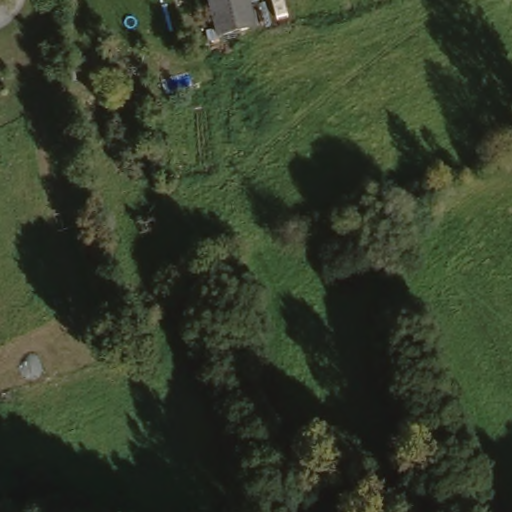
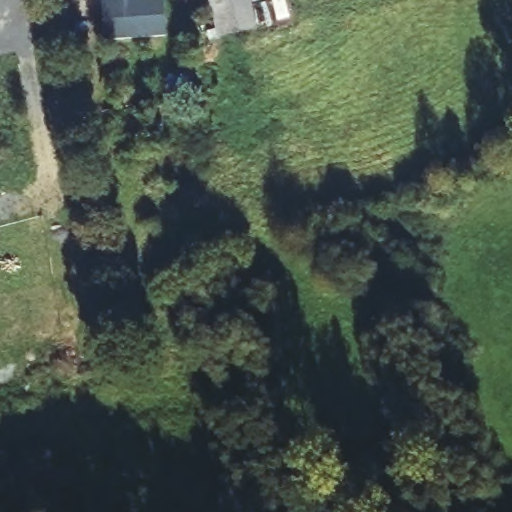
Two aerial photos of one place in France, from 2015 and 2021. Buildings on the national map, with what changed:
new [(128,0),(163,0),(165,37),(105,41),(102,1),(128,0)]
unchanged [(253,29),(217,37),(209,0),(246,0),(253,29)]

